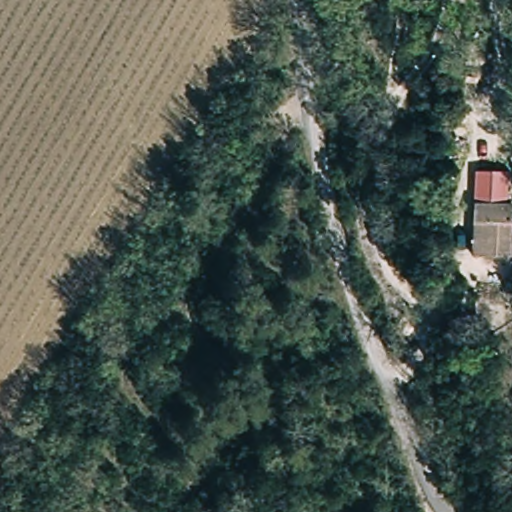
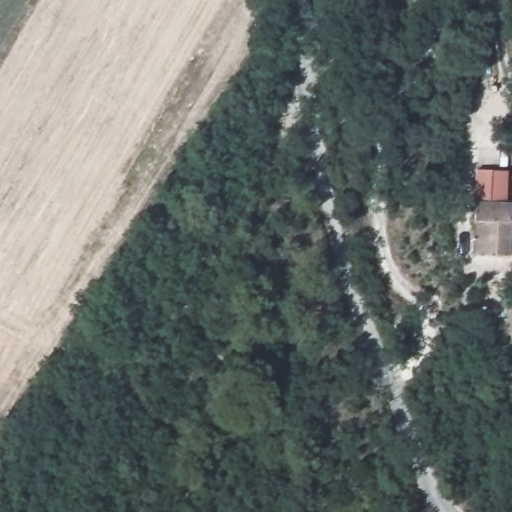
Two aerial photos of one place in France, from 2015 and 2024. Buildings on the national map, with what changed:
unchanged [(504,253),(482,251),(484,224),(471,222),(474,198),(497,200),(512,201),(507,236),(504,253)]

